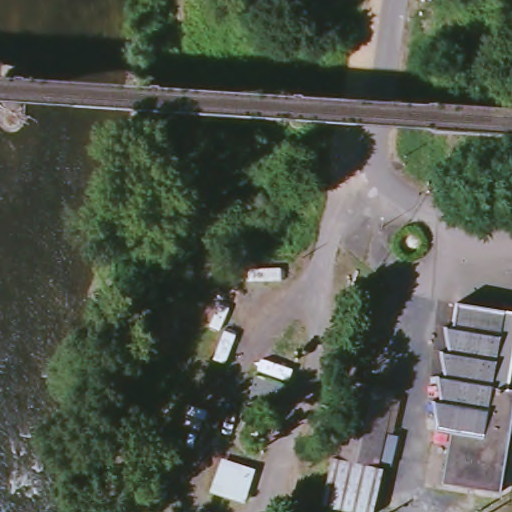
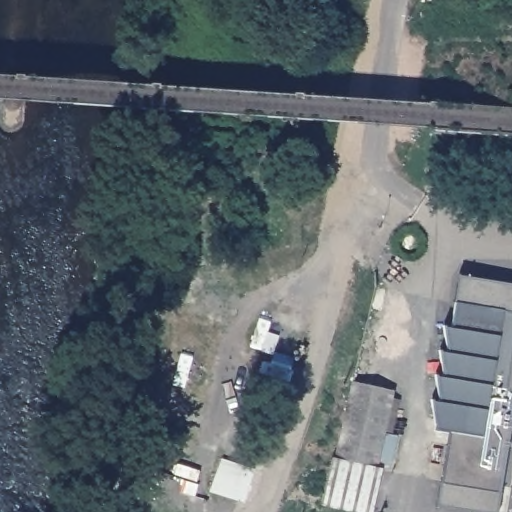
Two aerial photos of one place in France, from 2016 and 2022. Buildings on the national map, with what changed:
unchanged [(437,351),(448,352),(449,349),(443,330),(444,325),(455,326),(458,302),(512,309),(512,385),(512,388),(512,389),(512,433),(510,433),(501,491),(447,483),(455,432),(441,430),(442,424),(431,398),(442,399),(436,377),(446,377),(437,351)]
unchanged [(378,468),(387,472),(379,512),(341,512),(322,508),(349,382),(397,391),(378,468)]

